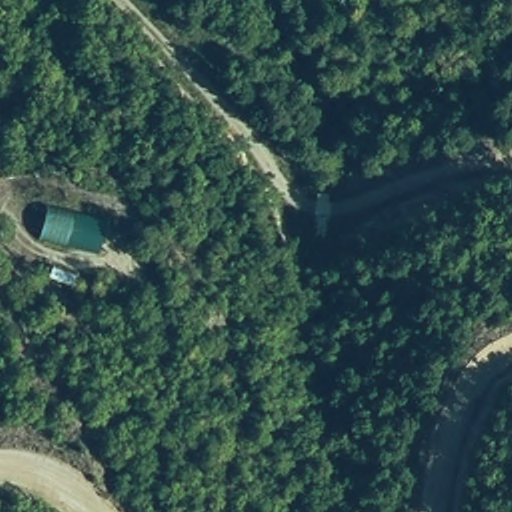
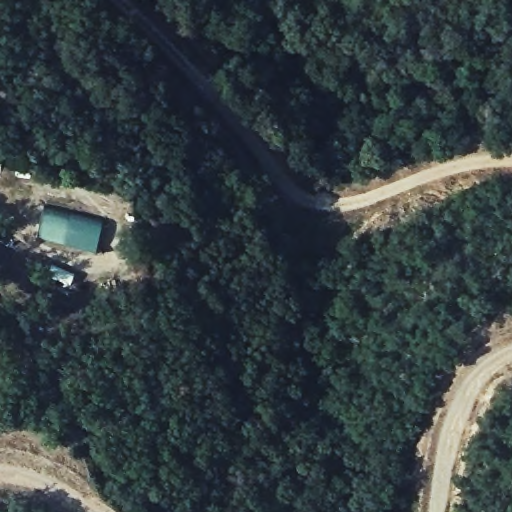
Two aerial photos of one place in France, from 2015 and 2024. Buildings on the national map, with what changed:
unchanged [(102,218),(96,251),(34,239),(42,205),(102,218)]

